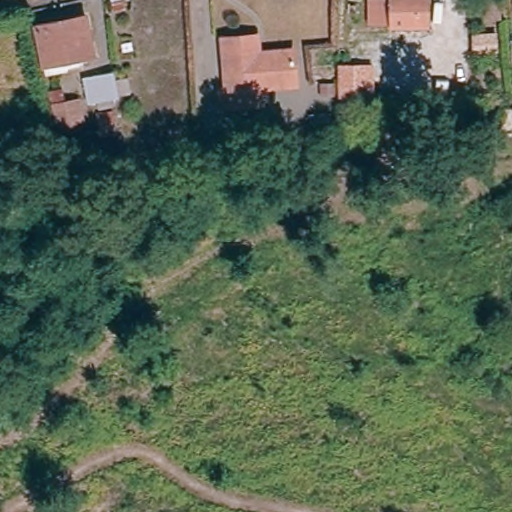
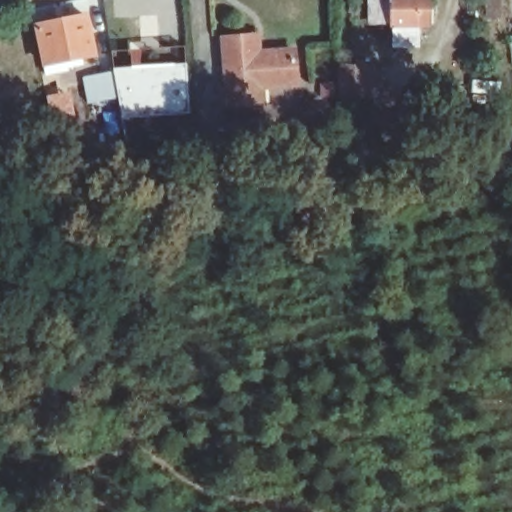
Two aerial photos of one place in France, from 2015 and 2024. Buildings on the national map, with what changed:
unchanged [(416,28),(389,27),(390,0),(426,0),(424,29),(416,28)]
unchanged [(491,17),(489,0),(502,0),(503,16),(491,17)]
unchanged [(88,14),(95,52),(46,62),(39,24),(88,14)]
unchanged [(250,104),(221,106),(219,90),(227,90),(223,39),(255,37),(257,52),(293,49),(294,68),(296,84),(287,84),(259,87),(259,103),(250,104)]
new [(189,115),(121,121),(113,70),(187,64),(189,115)]
unchanged [(105,85),(109,109),(79,114),(76,90),(105,85)]
unchanged [(54,101),(56,114),(70,111),(74,134),(49,139),(41,102),(54,101)]

